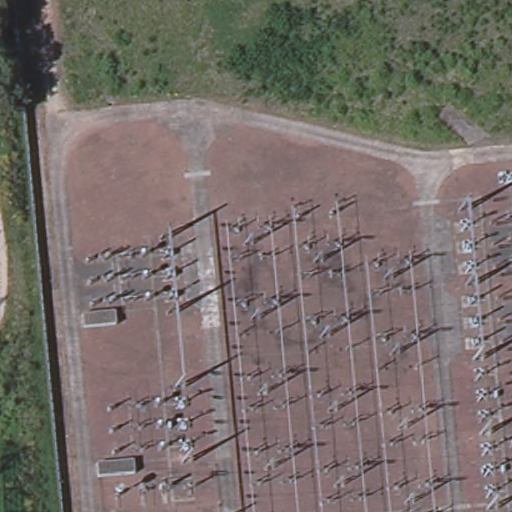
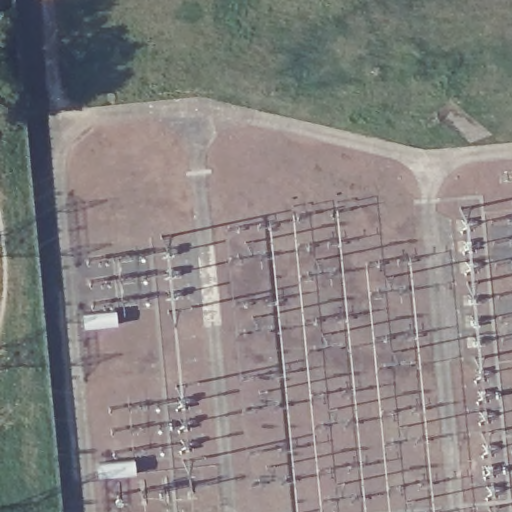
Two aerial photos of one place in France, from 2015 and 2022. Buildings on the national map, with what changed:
[]

